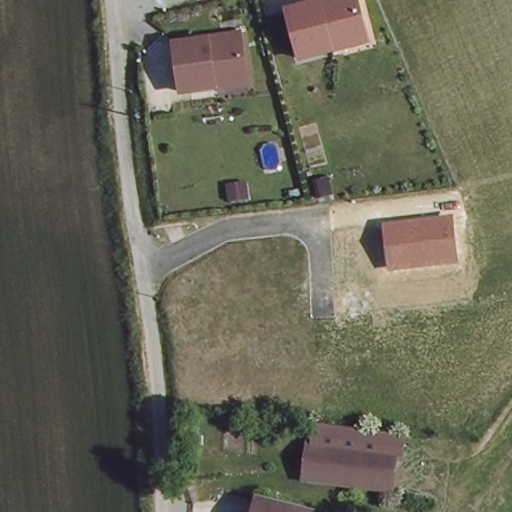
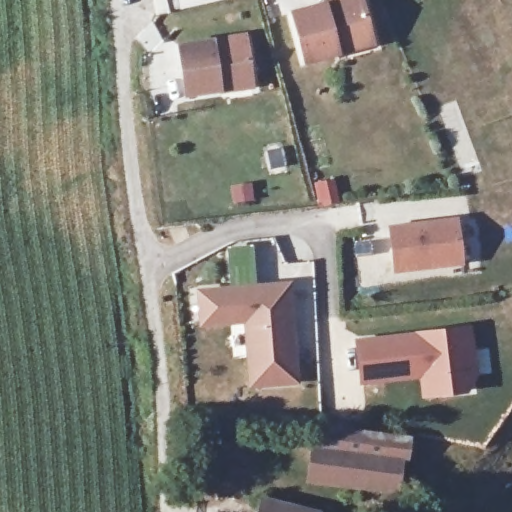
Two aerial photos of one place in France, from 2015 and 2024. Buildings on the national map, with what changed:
unchanged [(308,63),(293,10),(332,0),(368,0),(379,44),(308,63)]
unchanged [(223,89),(190,95),(182,47),(246,35),(253,75),(255,83),(223,89)]
unchanged [(458,218),(463,266),(392,273),(387,225),(458,218)]
new [(198,327),(196,287),(292,282),(299,387),(247,388),(242,325),(198,327)]
new [(475,325),(480,377),(471,395),(423,399),(422,381),(360,386),(355,339),(475,325)]
unchanged [(410,436),(407,460),(400,460),(396,495),(307,484),(313,424),(410,436)]
unchanged [(267,506),(292,512),(265,512),(267,506)]

